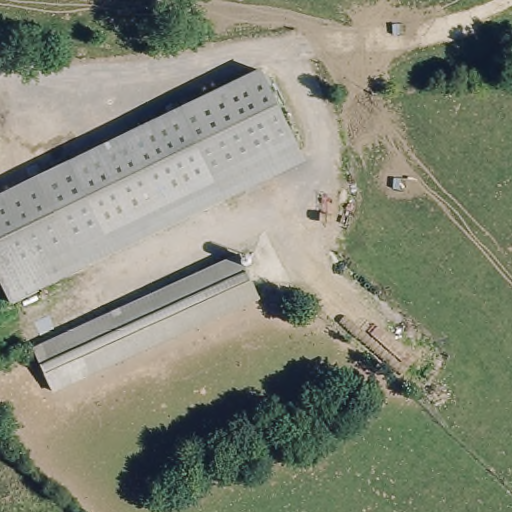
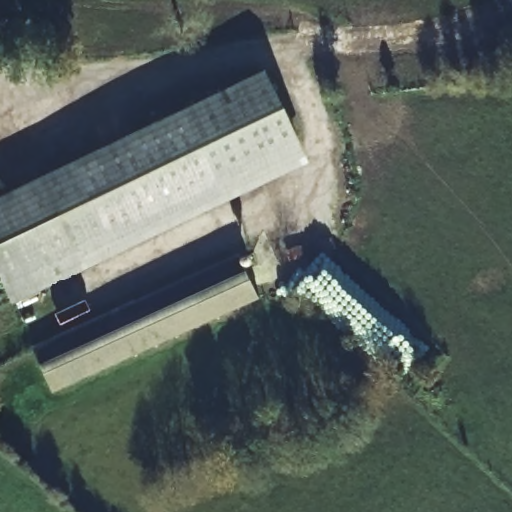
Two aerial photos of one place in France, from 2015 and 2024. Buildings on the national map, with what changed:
unchanged [(309,157),(12,298),(0,274),(0,200),(267,74),(309,157)]
unchanged [(237,252),(258,297),(56,394),(35,352),(237,252)]

